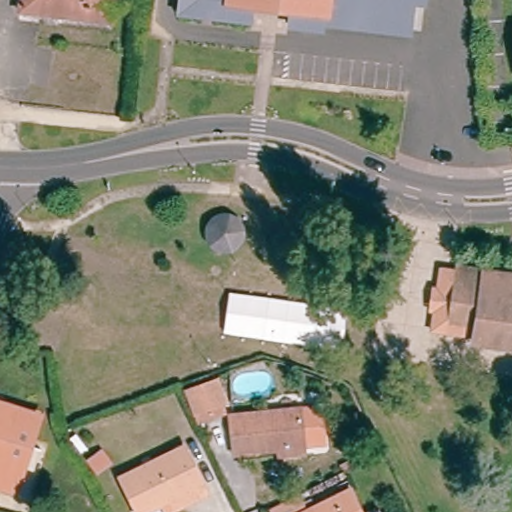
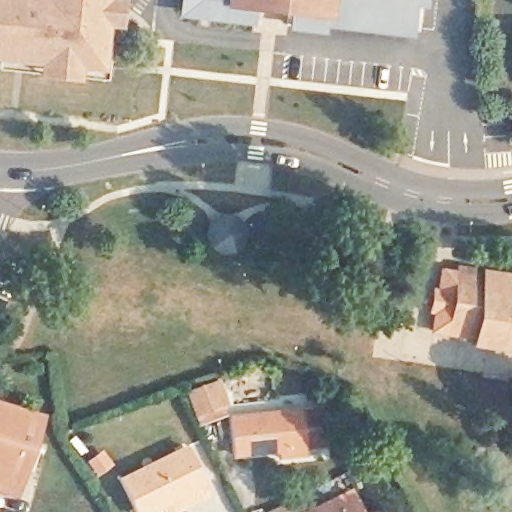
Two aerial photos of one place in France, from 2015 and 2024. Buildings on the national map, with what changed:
new [(110,28),(106,79),(76,73),(76,80),(32,76),(32,69),(0,69),(0,0),(118,0),(116,28),(110,28)]
demolished [(113,0),(109,34),(67,29),(17,22),(18,0),(113,0)]
unchanged [(182,4),(183,0),(250,0),(249,12),(182,4)]
unchanged [(361,19),(321,14),(320,25),(282,21),(285,0),(408,0),(406,24),(361,19)]
unchanged [(237,215),(242,220),(244,224),(246,232),(246,238),(242,244),(234,251),(228,252),(221,251),(214,249),(210,245),(207,240),(205,235),(205,230),(206,224),(209,220),(212,217),(219,214),(226,213),(230,214),(237,215)]
unchanged [(432,327),(439,268),(456,269),(456,264),(457,264),(512,270),(512,340),(473,337),(474,331),(450,328),(432,327)]
unchanged [(205,382),(217,411),(193,423),(178,392),(205,382)]
unchanged [(40,420),(21,499),(0,494),(0,414),(2,409),(40,420)]
unchanged [(233,462),(230,421),(298,414),(324,411),(327,447),(302,452),(275,456),(233,462)]
unchanged [(199,512),(160,512),(158,512),(131,512),(122,487),(179,459),(197,493),(205,509),(199,512)]
unchanged [(294,512),(271,512),(269,509),(297,495),(302,507),(294,512)]
unchanged [(345,497),(352,512),(312,512),(345,497)]
unchanged [(302,507),(305,512),(294,512),(302,507)]

